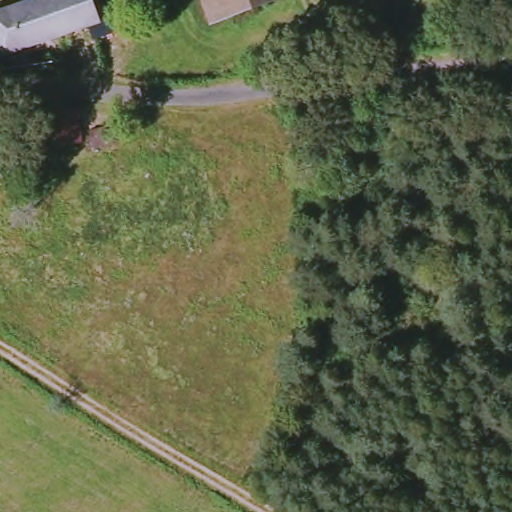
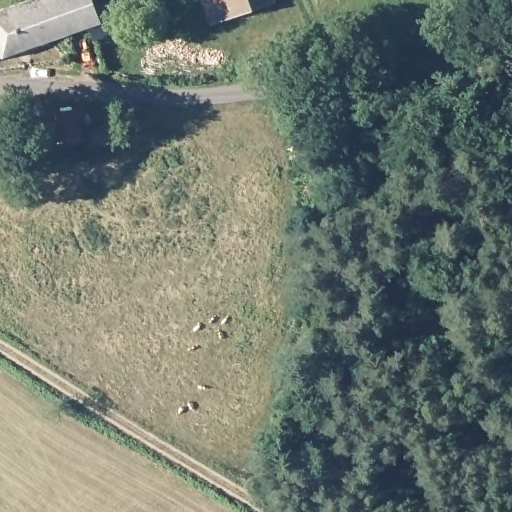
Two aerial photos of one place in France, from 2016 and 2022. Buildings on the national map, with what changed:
unchanged [(104,20),(78,28),(75,19),(0,44),(0,11),(32,0),(98,0),(104,20)]
unchanged [(281,4),(211,28),(201,0),(279,0),(281,4)]

